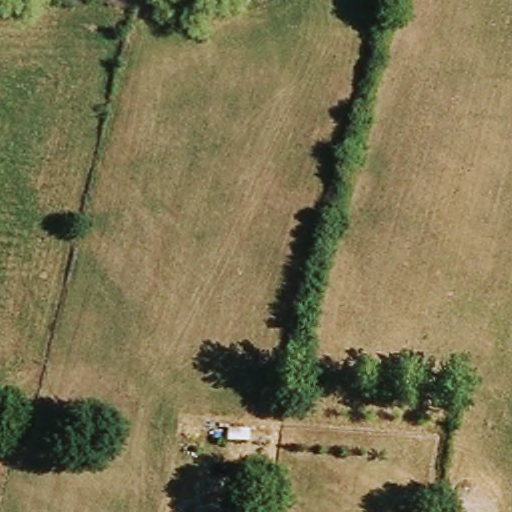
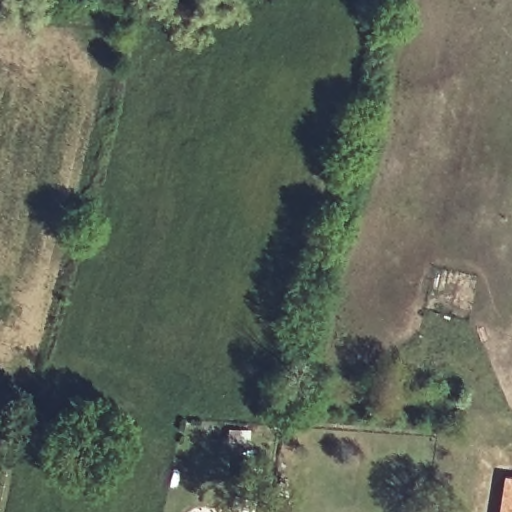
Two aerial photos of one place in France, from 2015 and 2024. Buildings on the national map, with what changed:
new [(512,477),(512,512),(499,512),(505,475),(512,477)]

